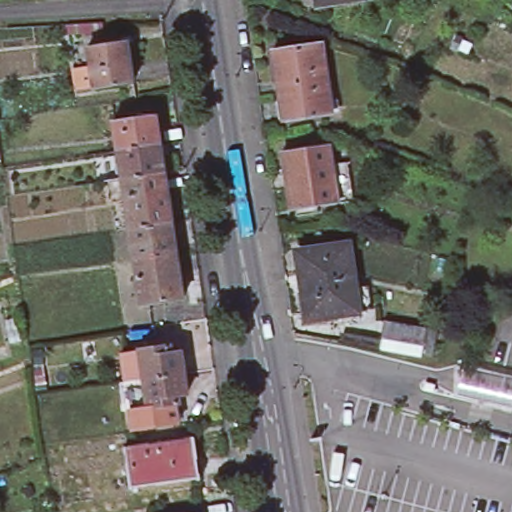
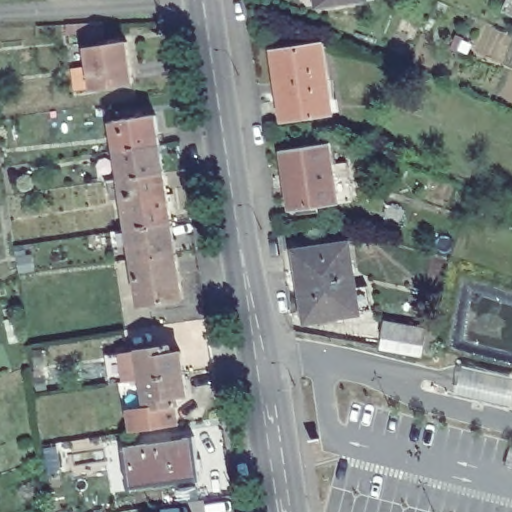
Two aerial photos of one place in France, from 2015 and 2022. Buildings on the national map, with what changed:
unchanged [(315,7),(314,0),(366,0),(315,7)]
unchanged [(512,4),(512,15),(507,13),(512,4)]
unchanged [(60,25),(77,24),(112,22),(113,34),(78,36),(78,34),(61,35),(60,25)]
unchanged [(464,38),(458,51),(450,48),(455,34),(464,38)]
unchanged [(83,69),(98,66),(97,48),(111,46),(110,41),(117,40),(118,44),(137,41),(143,82),(102,88),(102,87),(86,89),(83,69)]
unchanged [(272,50),(322,43),(332,113),(292,119),(282,121),(282,116),(272,50)]
unchanged [(117,115),(160,109),(165,139),(122,145),(117,115)]
unchanged [(177,189),(177,193),(173,193),(177,217),(133,223),(128,191),(116,193),(113,176),(126,174),(122,145),(165,139),(170,167),(172,190),(177,189)]
unchanged [(313,201),(313,206),(307,207),(307,202),(286,205),(277,146),(323,139),(327,159),(342,157),(348,195),(332,198),(313,201)]
unchanged [(138,254),(133,223),(177,217),(182,247),(138,254)]
unchanged [(371,309),(307,319),(297,252),(347,244),(354,287),(367,285),(371,309)]
unchanged [(145,300),(138,254),(182,247),(188,293),(145,300)]
unchanged [(424,344),(380,336),(384,319),(427,327),(437,329),(432,356),(422,354),(424,344)]
unchanged [(130,377),(148,374),(145,344),(175,340),(177,348),(186,346),(189,368),(192,389),(183,390),(184,398),(152,403),(135,406),(130,377)]
unchanged [(512,401),(510,407),(457,395),(463,366),(512,377),(512,401)]
unchanged [(423,389),(425,382),(435,384),(433,391),(423,389)]
unchanged [(197,480),(197,479),(157,485),(157,483),(132,487),(132,489),(130,490),(125,463),(127,463),(125,453),(124,453),(123,448),(131,446),(131,447),(186,439),(186,438),(194,437),(197,459),(196,459),(198,473),(199,473),(200,479),(197,480)]

